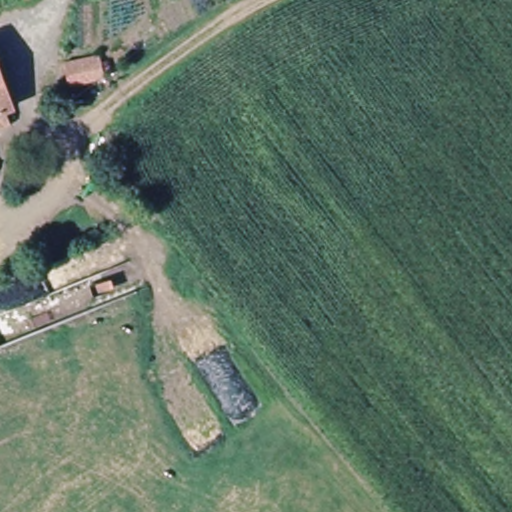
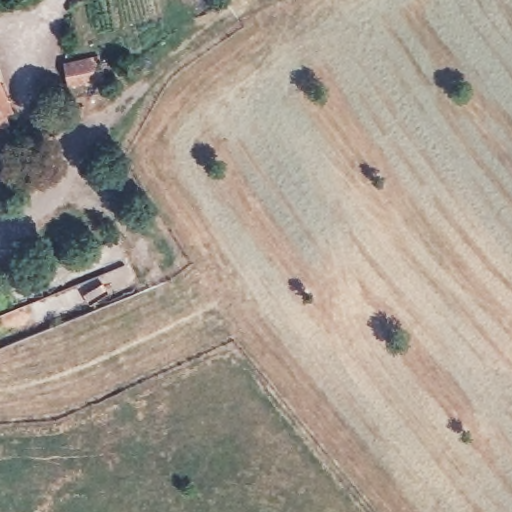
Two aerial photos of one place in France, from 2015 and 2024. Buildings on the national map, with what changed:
unchanged [(46,63),(85,48),(92,69),(54,84),(46,63)]
unchanged [(11,106),(0,110),(0,77),(11,106)]

